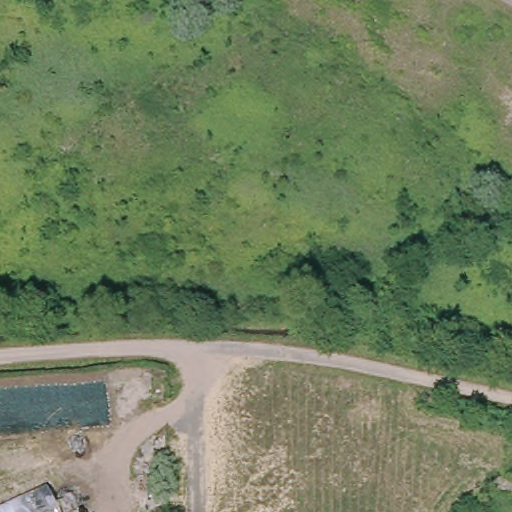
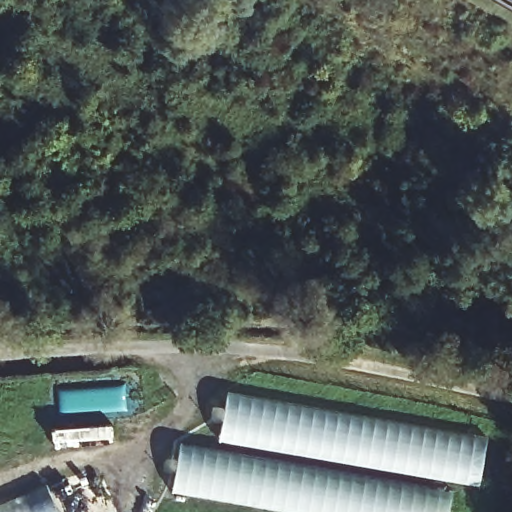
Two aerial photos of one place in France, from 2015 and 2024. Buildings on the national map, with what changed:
new [(480,483),(220,437),(228,390),(488,435),(480,483)]
new [(452,490),(448,512),(312,512),(172,490),(180,442),(452,490)]
unchanged [(57,512),(0,512),(0,505),(45,485),(57,512)]

